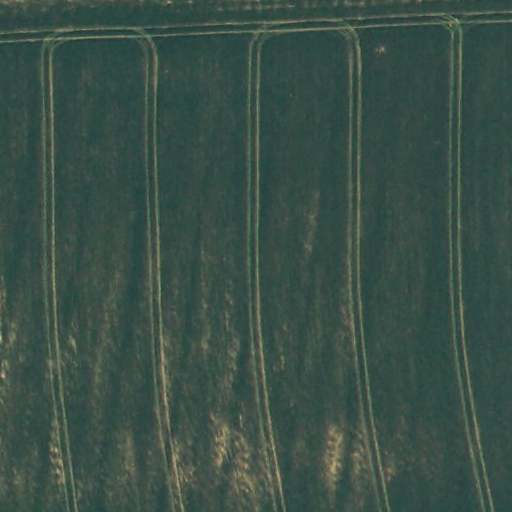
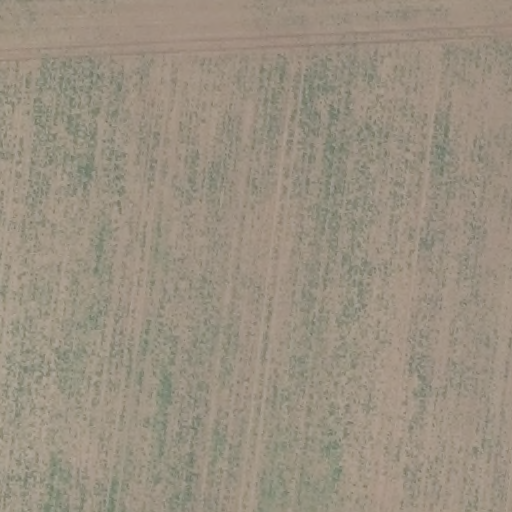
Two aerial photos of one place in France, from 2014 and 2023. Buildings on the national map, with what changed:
[]

